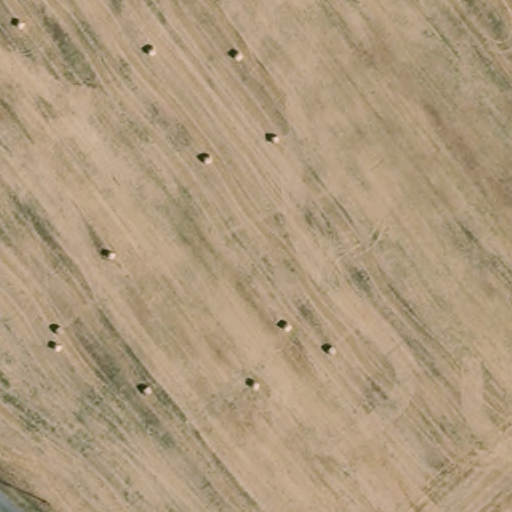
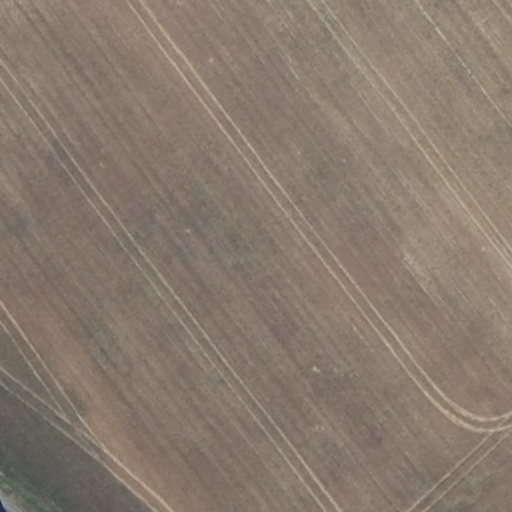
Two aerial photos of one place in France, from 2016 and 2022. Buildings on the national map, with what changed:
[]

